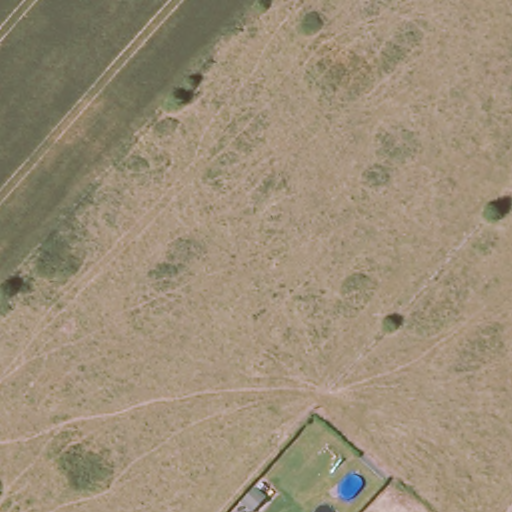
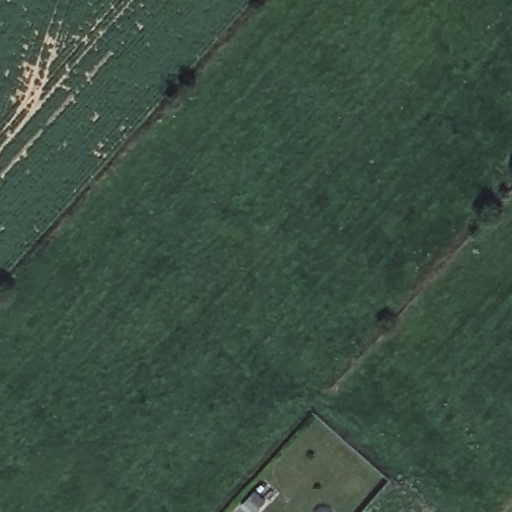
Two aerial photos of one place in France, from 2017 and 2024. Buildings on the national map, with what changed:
unchanged [(267,502),(258,512),(250,512),(244,506),(257,493),(267,502)]

